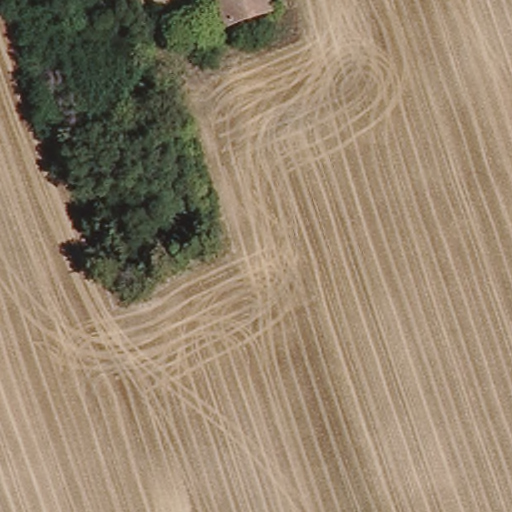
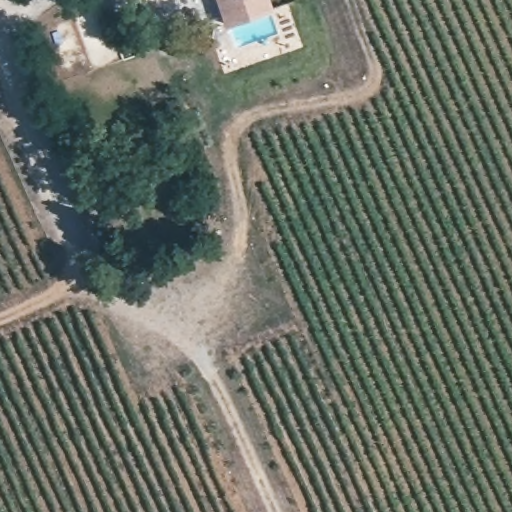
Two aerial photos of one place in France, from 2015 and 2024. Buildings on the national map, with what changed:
unchanged [(224,0),(276,0),(277,2),(230,19),(224,0)]

